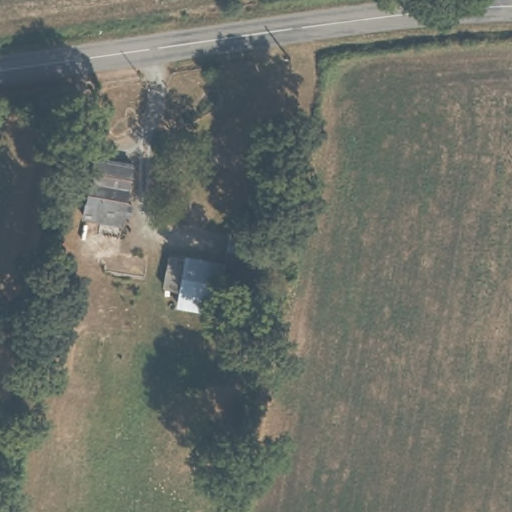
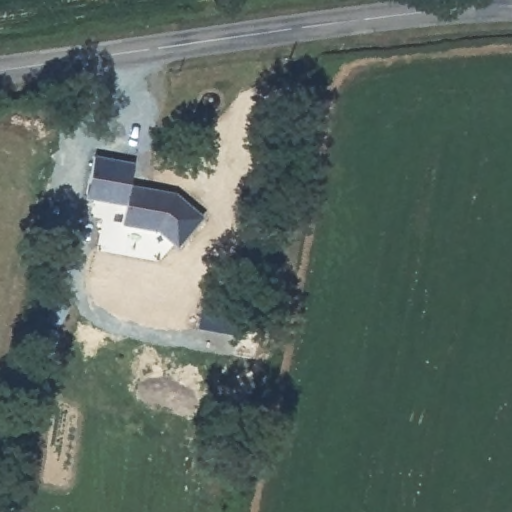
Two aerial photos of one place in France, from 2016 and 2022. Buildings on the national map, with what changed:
unchanged [(135,163),(127,206),(89,199),(96,156),(135,163)]
new [(177,249),(157,232),(122,225),(127,206),(131,185),(175,193),(204,217),(177,249)]

